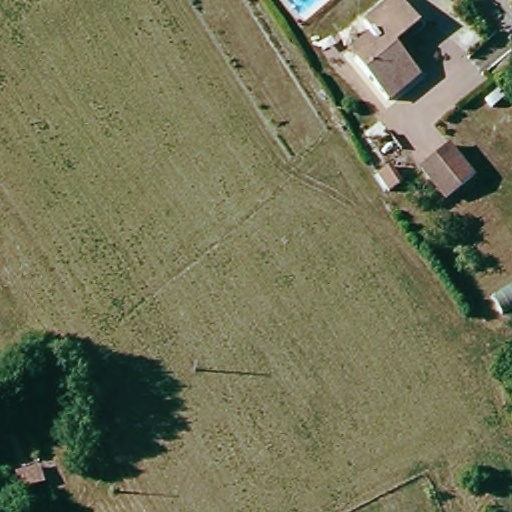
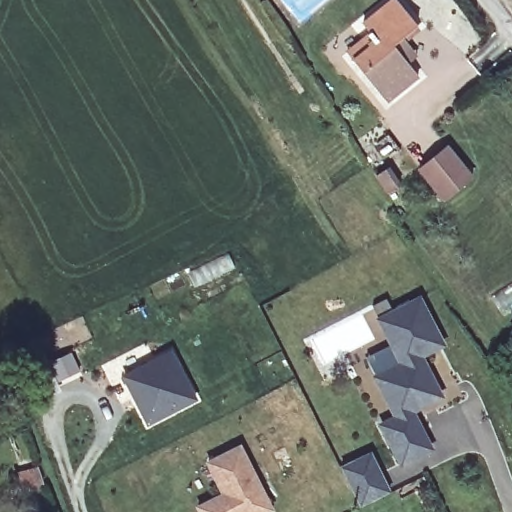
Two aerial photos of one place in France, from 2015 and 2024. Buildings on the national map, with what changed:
unchanged [(415,83),(384,108),(352,67),(369,53),(363,45),(372,38),(360,25),(387,0),(389,0),(419,32),(394,54),(415,83)]
unchanged [(439,201),(417,171),(448,149),(470,179),(439,201)]
new [(445,345),(424,356),(445,398),(417,413),(435,449),(400,466),(379,425),(392,417),(371,377),(397,364),(375,317),(420,293),(445,345)]
new [(122,375),(170,352),(197,400),(147,426),(122,375)]
new [(274,512),(199,512),(197,507),(222,494),(206,461),(239,444),(275,512),(274,512)]
new [(372,451),(391,492),(361,506),(342,467),(372,451)]

